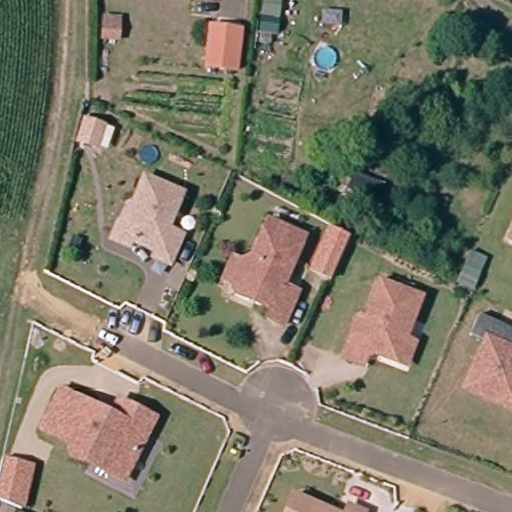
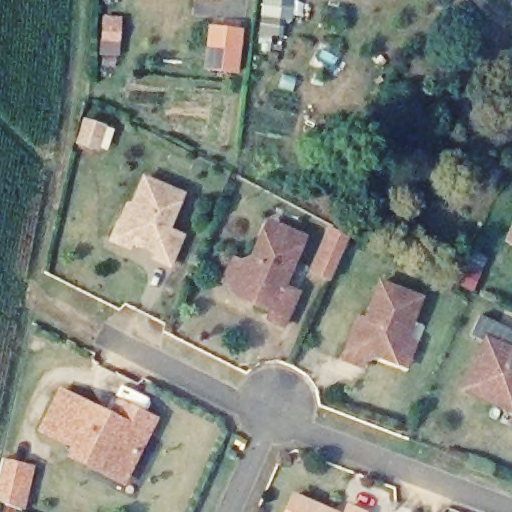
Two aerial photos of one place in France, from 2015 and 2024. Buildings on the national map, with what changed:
unchanged [(206,28),(242,30),(240,76),(204,71),(206,28)]
unchanged [(84,118),(99,119),(98,146),(82,145),(84,118)]
unchanged [(103,238),(114,217),(119,220),(142,173),(179,191),(161,227),(176,234),(160,269),(149,263),(152,256),(127,244),(124,250),(103,238)]
unchanged [(266,219),(302,234),(283,285),(297,291),(283,325),(267,319),(271,310),(255,304),(257,299),(250,296),(248,300),(235,294),(232,285),(222,282),(232,257),(242,261),(252,257),(266,219)]
unchanged [(512,234),(512,238),(511,237),(512,234)]
unchanged [(407,370),(397,367),(368,355),(363,369),(344,361),(359,320),(367,323),(382,284),(423,301),(415,323),(407,342),(406,345),(416,349),(407,370)]
unchanged [(487,339),(473,332),(481,315),(510,331),(512,333),(512,349),(512,350),(512,351),(512,413),(463,389),(487,339)]
unchanged [(73,453),(77,445),(46,427),(66,388),(101,407),(116,416),(109,412),(117,397),(160,417),(151,436),(130,474),(125,483),(92,464),(73,453)]
unchanged [(5,461),(34,465),(27,509),(0,498),(0,483),(5,461)]
unchanged [(327,512),(287,512),(292,497),(327,512)]
unchanged [(348,507),(359,512),(346,512),(348,507)]

